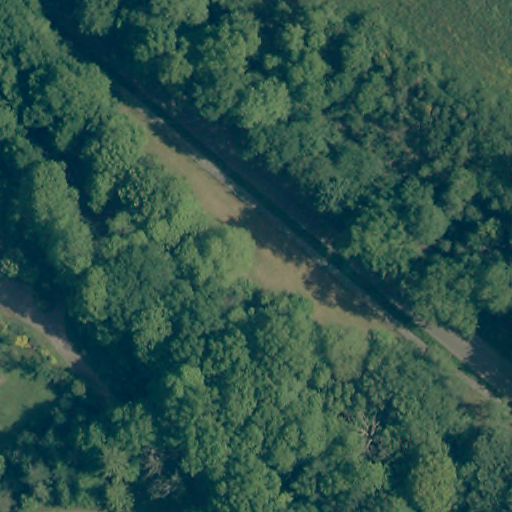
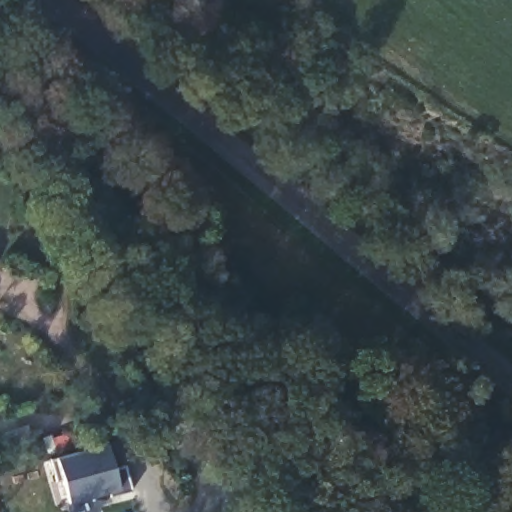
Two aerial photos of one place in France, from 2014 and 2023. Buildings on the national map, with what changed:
unchanged [(0,275),(0,255),(7,258),(0,275)]
new [(106,445),(114,469),(123,465),(131,489),(111,495),(110,492),(69,505),(56,459),(106,445)]

